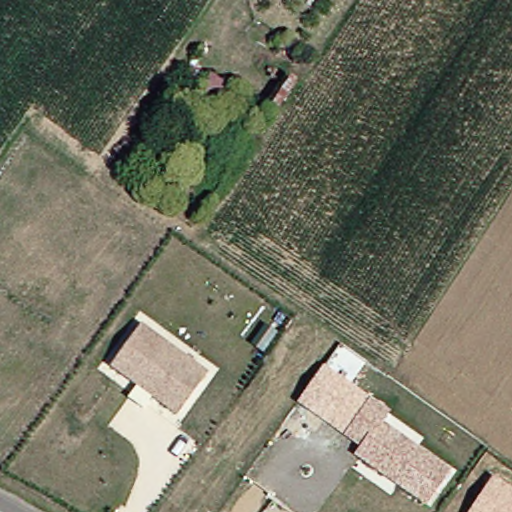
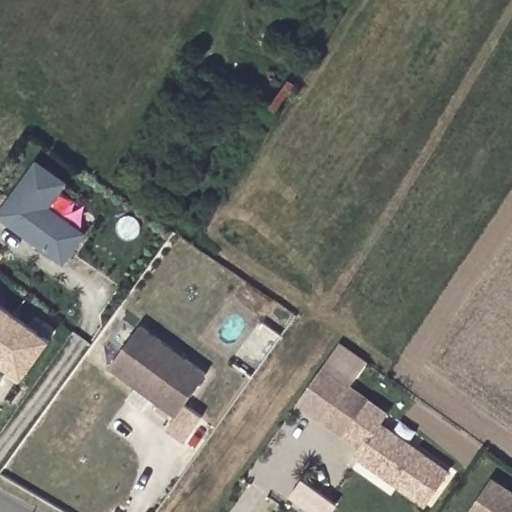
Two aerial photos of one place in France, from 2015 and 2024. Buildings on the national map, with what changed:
new [(64,182),(47,207),(82,233),(63,260),(0,215),(0,214),(37,163),(64,182)]
new [(12,315),(0,333),(0,306),(12,315)]
new [(3,375),(0,373),(0,333),(12,315),(47,340),(21,377),(15,385),(3,375)]
unchanged [(110,368),(141,325),(208,373),(177,416),(110,368)]
new [(296,402),(322,366),(370,401),(346,436),(296,402)]
unchanged [(426,505),(356,456),(362,448),(346,436),(370,401),(387,413),(380,424),(449,472),(426,505)]
unchanged [(512,490),(512,512),(468,512),(492,476),(512,490)]

